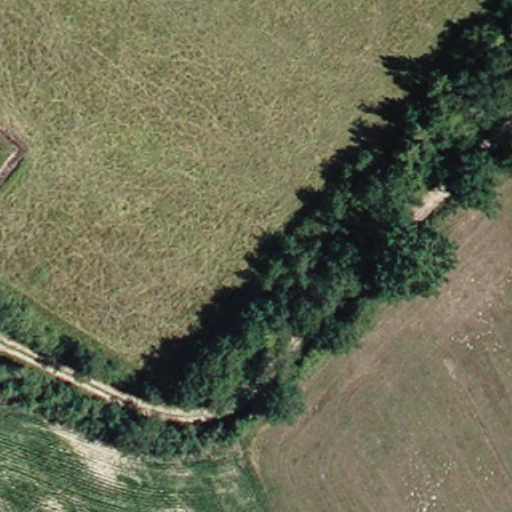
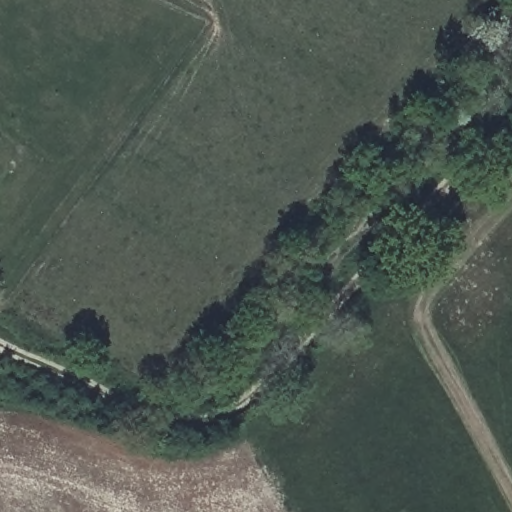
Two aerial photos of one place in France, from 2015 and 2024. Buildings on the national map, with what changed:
[]

